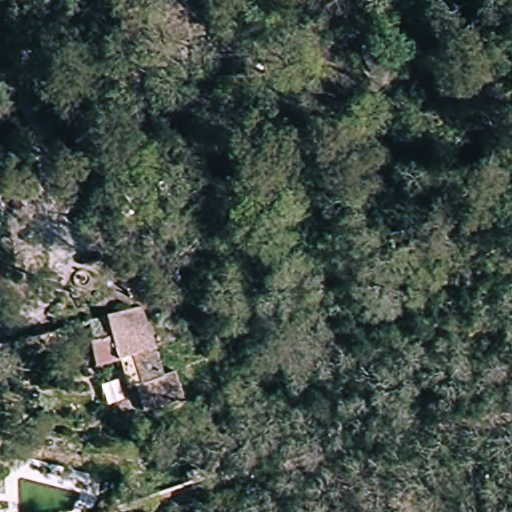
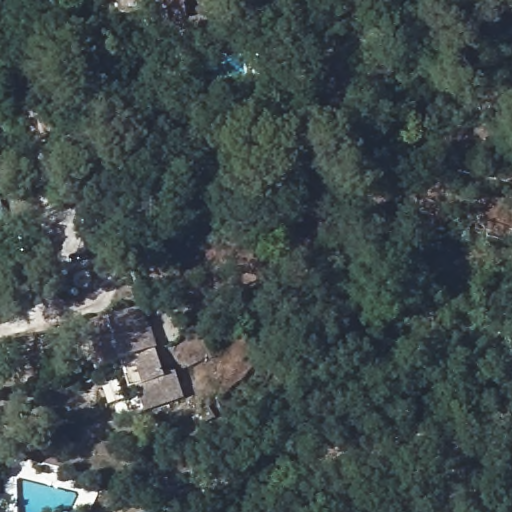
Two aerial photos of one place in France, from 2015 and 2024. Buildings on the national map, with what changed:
unchanged [(166,26),(145,30),(139,6),(160,1),(166,26)]
unchanged [(15,218),(0,218),(0,182),(13,181),(15,218)]
unchanged [(179,411),(152,419),(145,393),(137,396),(129,369),(104,375),(97,350),(94,336),(154,320),(179,411)]

